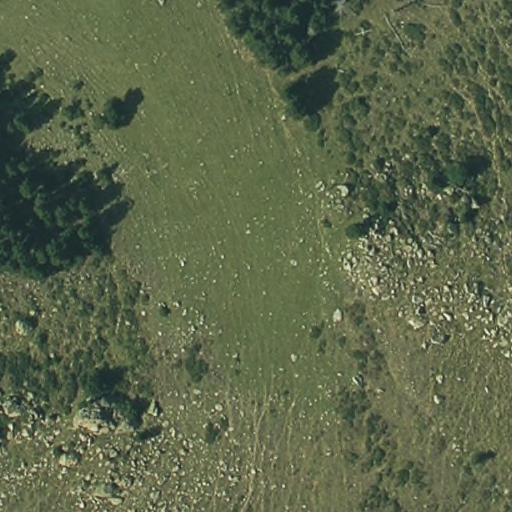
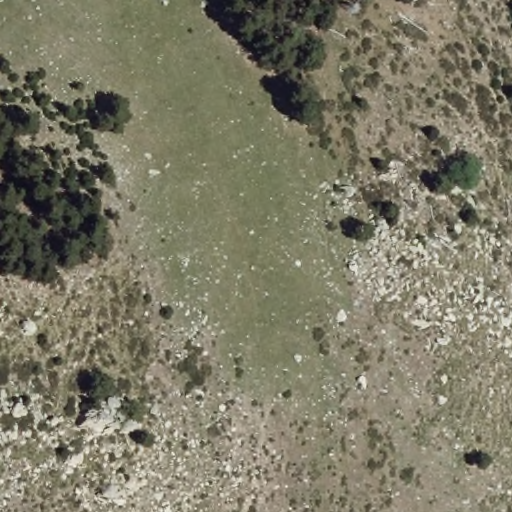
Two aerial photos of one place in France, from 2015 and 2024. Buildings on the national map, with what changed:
[]

